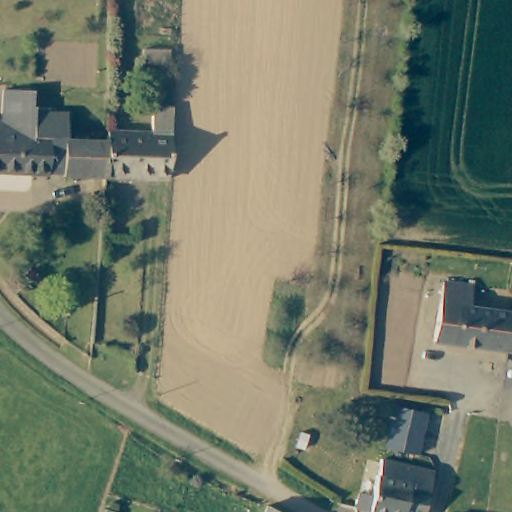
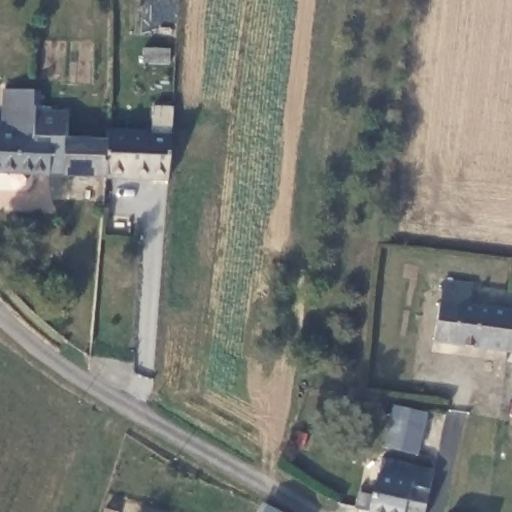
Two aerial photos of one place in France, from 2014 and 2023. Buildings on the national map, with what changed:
unchanged [(33,174),(0,173),(0,111),(1,92),(33,91),(33,112),(33,174)]
unchanged [(174,107),(169,180),(105,177),(107,140),(107,130),(149,131),(151,106),(174,107)]
unchanged [(33,174),(33,112),(66,114),(65,139),(54,139),(52,177),(33,176),(33,174)]
unchanged [(105,177),(64,175),(67,140),(107,140),(105,177)]
unchanged [(5,235),(6,243),(2,249),(0,250),(0,233),(5,235)]
unchanged [(435,340),(447,281),(476,285),(473,305),(512,310),(512,334),(511,351),(435,340)]
unchanged [(512,352),(511,351),(512,334),(512,352)]
unchanged [(393,407),(426,414),(416,455),(384,447),(393,407)]
unchanged [(359,512),(362,497),(377,500),(385,465),(437,477),(429,512),(359,512)]
unchanged [(276,512),(265,512),(267,508),(276,512)]

